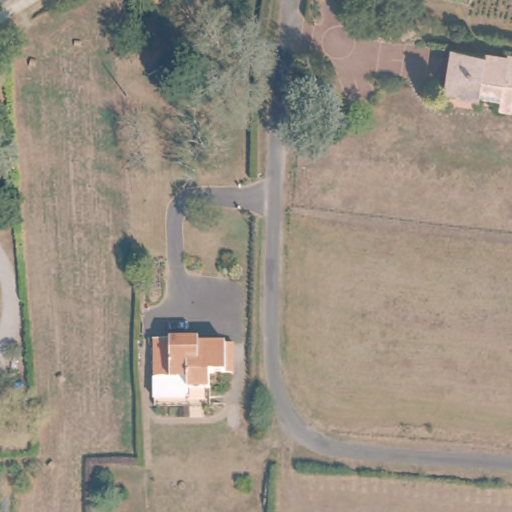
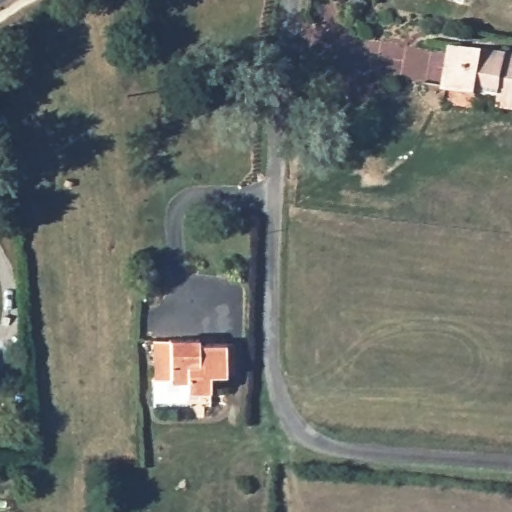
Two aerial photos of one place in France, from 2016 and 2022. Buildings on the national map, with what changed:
unchanged [(507,63),(508,56),(512,57),(512,103),(501,102),(502,99),(481,96),(478,113),(448,108),(455,50),(487,54),(486,60),(507,63)]
unchanged [(182,401),(153,398),(154,378),(158,334),(203,338),(202,343),(229,345),(228,375),(212,374),(211,388),(187,387),(186,397),(182,401)]

